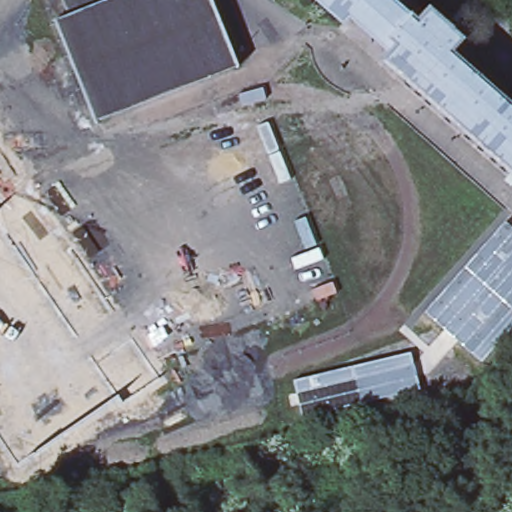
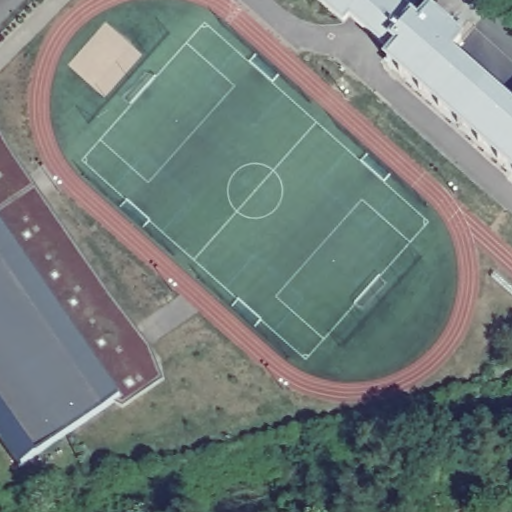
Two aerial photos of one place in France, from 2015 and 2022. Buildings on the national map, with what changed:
demolished [(135,0),(215,0),(243,71),(239,71),(103,125),(99,128),(58,27),(60,26),(61,29),(74,24),(135,0)]
demolished [(74,24),(65,0),(135,0),(74,24)]
unchanged [(397,55),(356,17),(350,23),(323,0),(389,0),(416,24),(417,22),(424,29),(437,16),(468,43),(455,58),(512,107),(512,167),(391,62),(397,55)]
new [(10,153),(103,287),(148,345),(163,378),(123,407),(116,402),(36,454),(19,467),(0,439),(0,135),(10,153)]

